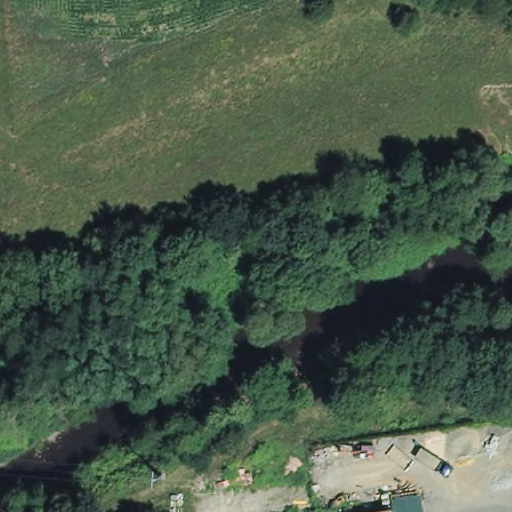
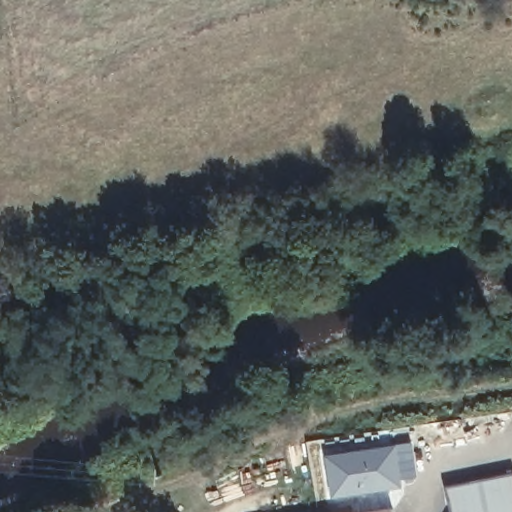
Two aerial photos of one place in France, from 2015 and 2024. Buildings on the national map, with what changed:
new [(342,449),(342,446),(411,440),(416,478),(401,481),(402,489),(330,500),(322,453),(342,449)]
new [(510,480),(512,494),(512,512),(451,512),(447,487),(510,480)]
demolished [(394,512),(340,512),(392,504),(394,512)]

